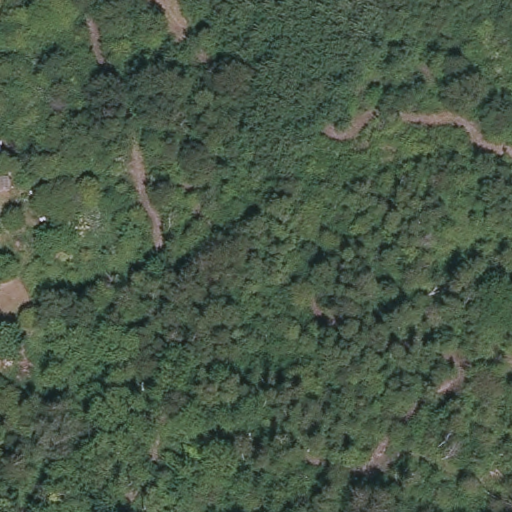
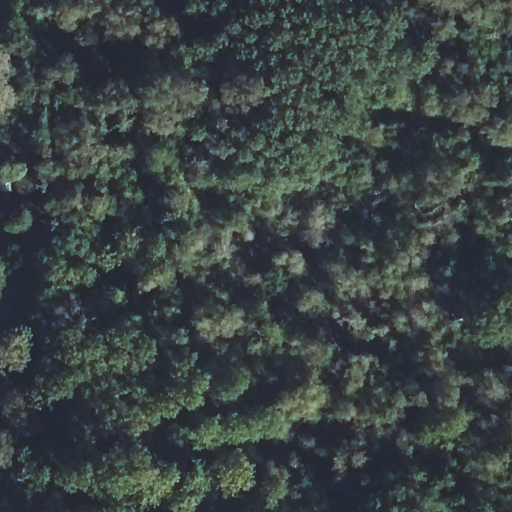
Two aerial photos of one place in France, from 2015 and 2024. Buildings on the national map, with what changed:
[]

